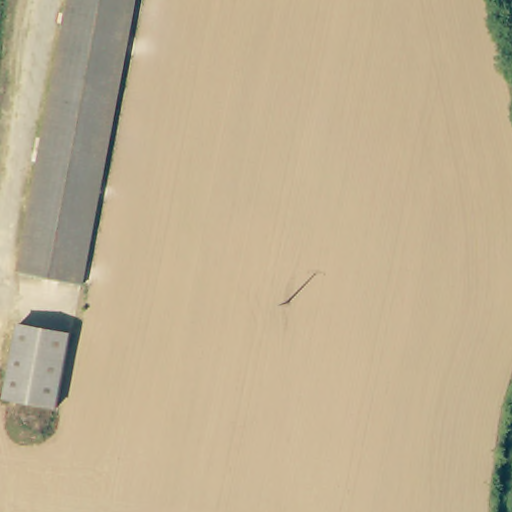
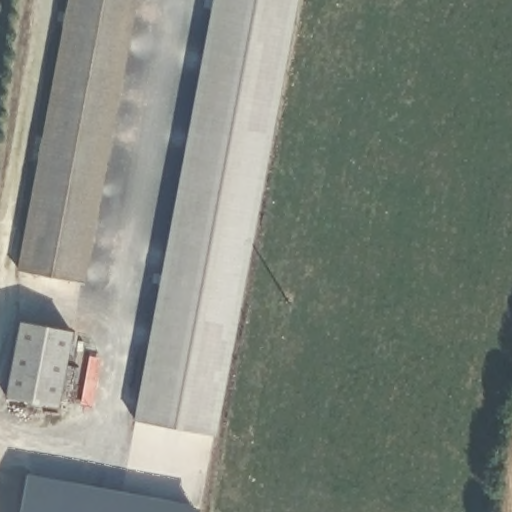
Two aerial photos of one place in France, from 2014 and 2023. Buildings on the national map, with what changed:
unchanged [(18,269),(69,0),(129,0),(76,281),(18,269)]
new [(296,0),(214,435),(134,421),(212,0),(296,0)]
unchanged [(6,400),(19,334),(21,324),(71,334),(69,344),(56,410),(6,400)]
new [(197,512),(19,512),(26,477),(198,508),(197,512)]

